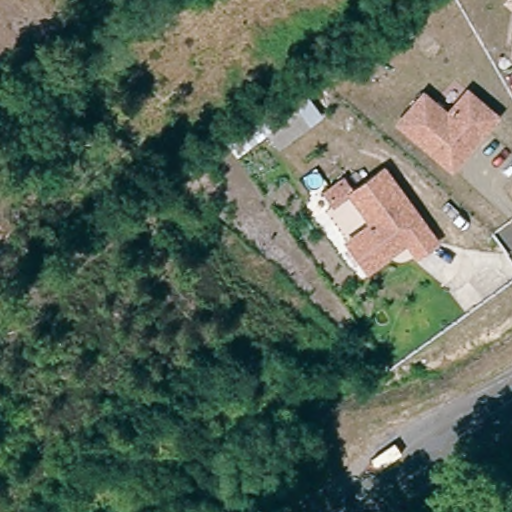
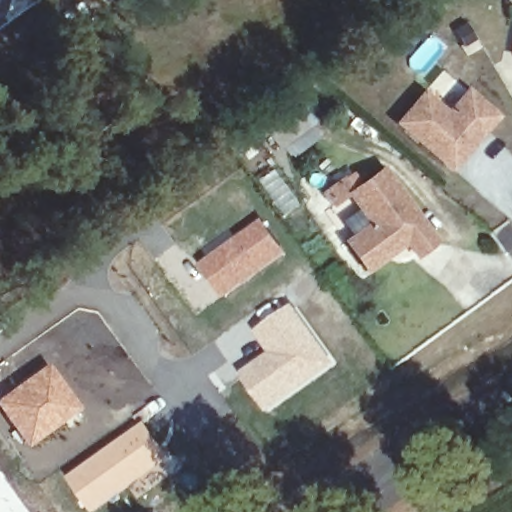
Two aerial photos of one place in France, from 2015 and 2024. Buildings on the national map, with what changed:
unchanged [(512,0),(512,3),(508,0),(512,0)]
unchanged [(451,172),(399,126),(424,97),(447,118),(467,95),(496,120),(484,134),(476,144),(451,172)]
unchanged [(279,141),(271,130),(297,110),(306,123),(281,142),(279,141)]
unchanged [(369,270),(348,242),(373,223),(351,193),(334,205),(325,193),(345,178),(354,191),(385,168),(437,241),(418,255),(408,241),(391,253),(369,270)]
new [(265,218),(288,254),(226,300),(200,265),(265,218)]
new [(267,352),(253,331),(294,303),(337,363),(267,413),(239,373),(267,352)]
new [(50,361),(81,407),(26,447),(0,410),(0,396),(50,361)]
new [(122,437),(146,422),(171,460),(97,512),(93,512),(67,477),(122,437)]

